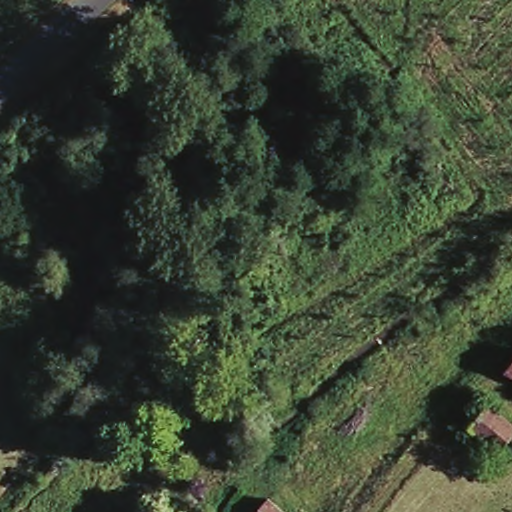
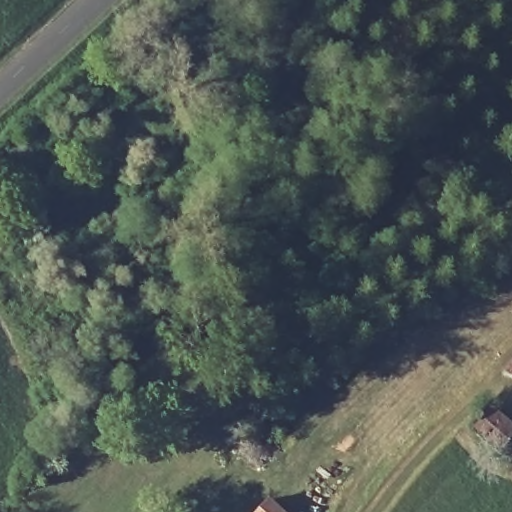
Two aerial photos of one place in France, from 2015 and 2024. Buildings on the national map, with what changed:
unchanged [(512,359),(512,379),(498,373),(512,359)]
unchanged [(483,404),(512,427),(512,432),(497,451),(466,426),(483,404)]
unchanged [(273,512),(258,512),(264,505),(273,512)]

